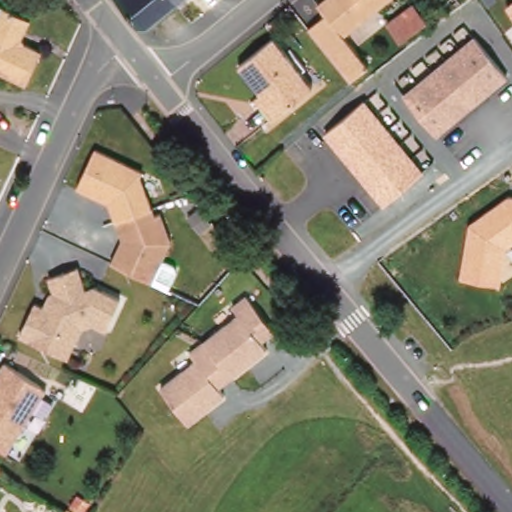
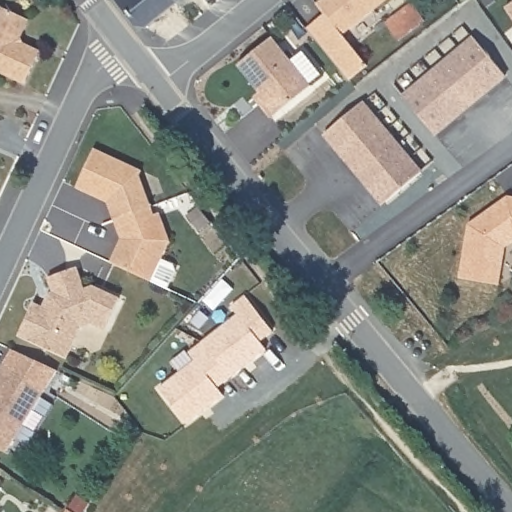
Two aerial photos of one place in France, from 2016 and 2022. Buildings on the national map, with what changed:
unchanged [(141,28),(121,0),(171,0),(173,2),(141,28)]
unchanged [(171,0),(176,0),(173,2),(171,0)]
unchanged [(317,5),(325,0),(395,0),(342,36),(365,69),(344,83),(306,28),(325,15),(317,5)]
unchanged [(512,2),(512,19),(505,7),(512,2)]
unchanged [(421,21),(392,45),(378,26),(407,4),(421,21)]
unchanged [(3,10),(30,22),(22,39),(24,46),(41,54),(26,86),(0,75),(0,16),(3,10)]
unchanged [(268,36),(306,89),(271,115),(255,93),(233,63),(268,36)]
unchanged [(507,79),(437,140),(399,97),(474,38),(507,79)]
unchanged [(426,176),(385,212),(321,138),(362,104),(426,176)]
unchanged [(95,151),(142,174),(134,192),(147,198),(151,217),(157,216),(169,244),(150,285),(109,266),(120,242),(119,204),(95,192),(92,197),(77,190),(95,151)]
unchanged [(512,200),(512,249),(507,252),(500,284),(458,280),(468,227),(508,200),(512,200)]
unchanged [(32,303),(50,311),(55,299),(47,277),(76,265),(84,288),(94,285),(121,297),(105,330),(92,323),(80,328),(65,359),(17,336),(32,303)]
unchanged [(162,389),(197,360),(191,352),(241,312),(235,304),(248,293),(276,330),(263,340),(269,348),(220,388),(226,396),(189,425),(162,389)]
unchanged [(5,363),(47,390),(6,455),(0,452),(0,371),(5,363)]

